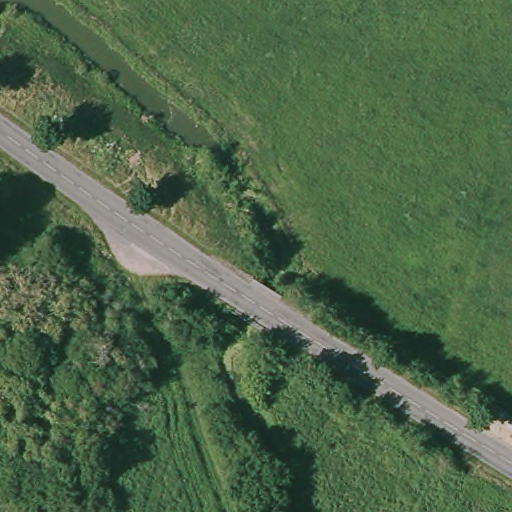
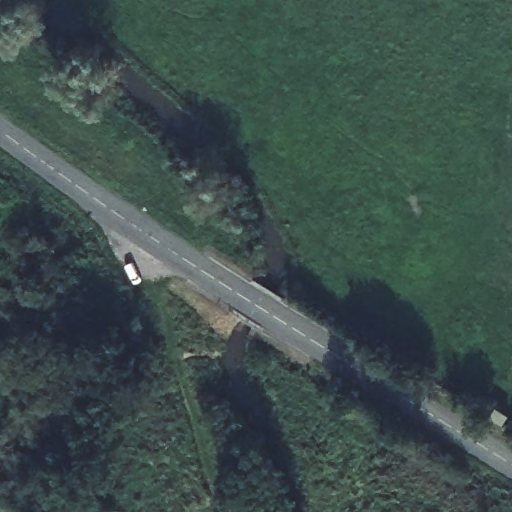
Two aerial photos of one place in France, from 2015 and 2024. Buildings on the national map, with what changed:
unchanged [(498,421),(510,430),(504,440),(490,431),(498,421)]

